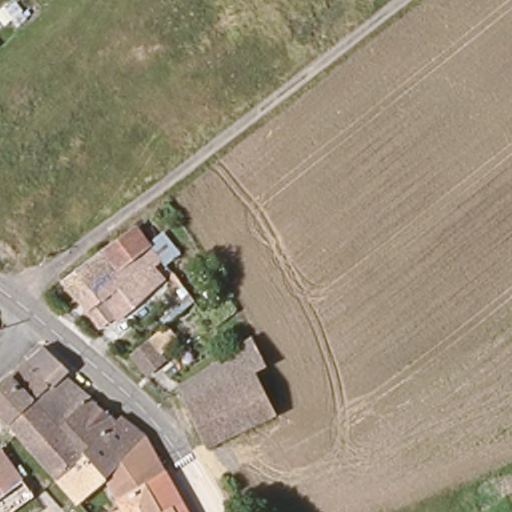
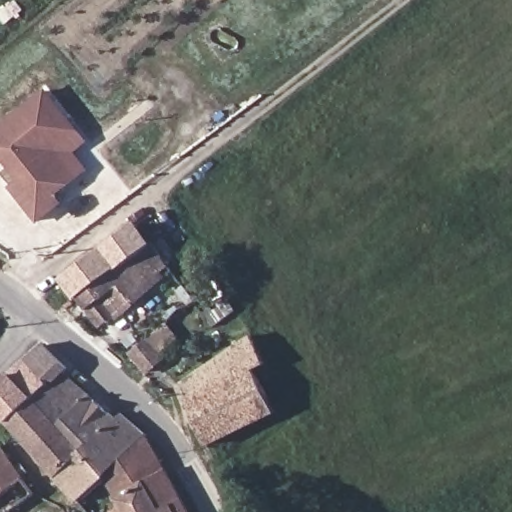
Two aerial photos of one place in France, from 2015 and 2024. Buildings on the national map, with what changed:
new [(76,152),(89,170),(58,195),(64,204),(37,224),(10,188),(19,182),(0,157),(0,127),(47,90),(89,144),(76,152)]
unchanged [(78,297),(64,280),(134,225),(147,242),(127,258),(78,297)]
unchanged [(78,297),(127,258),(151,288),(101,326),(78,297)]
unchanged [(165,322),(178,338),(161,351),(166,358),(146,376),(128,355),(165,322)]
unchanged [(264,366),(252,372),(271,412),(204,445),(176,386),(250,337),(264,366)]
unchanged [(28,357),(43,344),(69,366),(64,371),(90,392),(77,406),(28,357)]
unchanged [(116,415),(120,410),(142,429),(140,432),(100,479),(81,502),(80,502),(58,477),(11,426),(0,413),(0,384),(28,357),(77,406),(90,392),(116,415)]
unchanged [(119,512),(100,479),(140,432),(186,512),(119,512)]
unchanged [(20,473),(14,478),(8,483),(0,489),(0,445),(20,473)]
unchanged [(35,477),(43,487),(25,505),(19,512),(0,512),(0,489),(8,483),(14,478),(20,473),(27,482),(35,477)]

